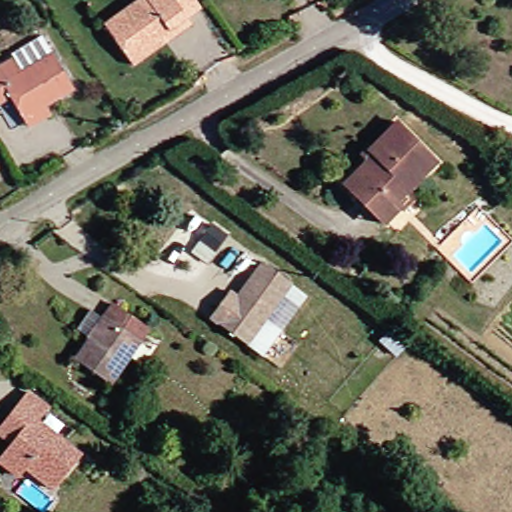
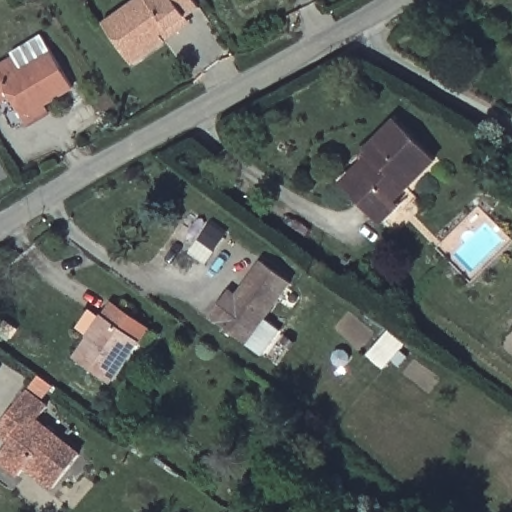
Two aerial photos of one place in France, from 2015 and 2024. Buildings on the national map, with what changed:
unchanged [(174,38),(142,58),(114,18),(139,0),(194,0),(201,9),(195,14),(199,21),(174,38)]
unchanged [(32,126),(26,116),(12,94),(2,99),(0,97),(0,69),(21,55),(27,66),(58,50),(79,86),(52,104),(56,110),(57,113),(32,126)]
unchanged [(384,226),(374,216),(347,188),(377,161),(371,154),(380,142),(406,119),(447,159),(413,192),(417,196),(384,226)]
unchanged [(241,299),(267,261),(298,283),(252,341),(218,317),(227,304),(234,294),(241,299)]
unchanged [(156,325),(118,380),(84,356),(95,339),(84,331),(99,310),(110,317),(120,302),(156,325)]
unchanged [(53,408),(45,419),(87,453),(61,487),(33,463),(22,475),(3,457),(16,441),(3,428),(12,417),(33,390),(53,408)]

